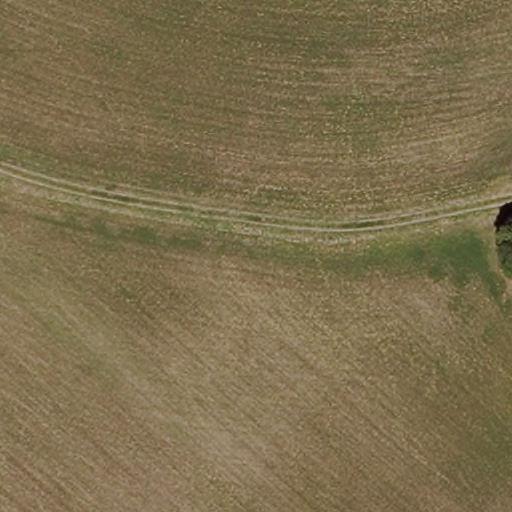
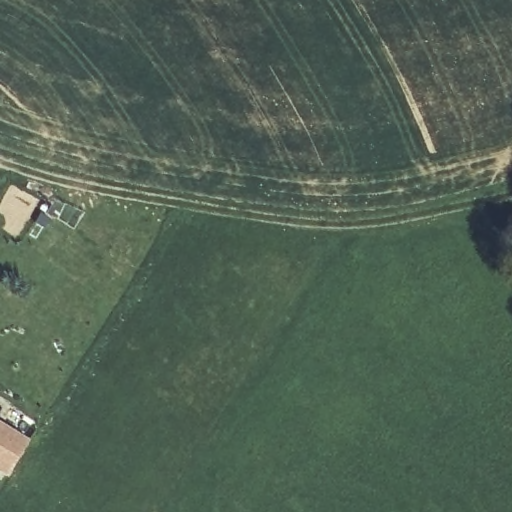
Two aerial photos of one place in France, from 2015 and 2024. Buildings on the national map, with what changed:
new [(4,475),(0,472),(0,424),(25,440),(4,475)]

